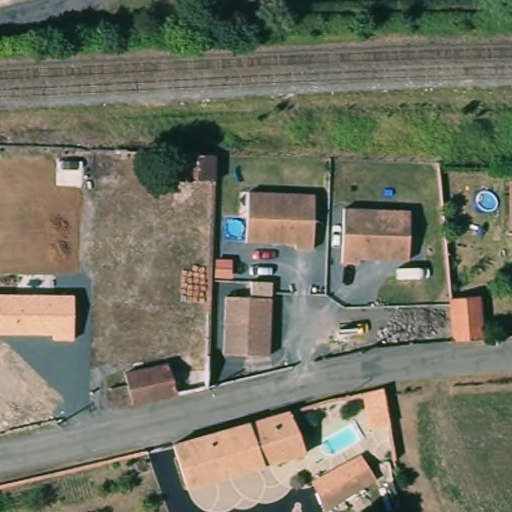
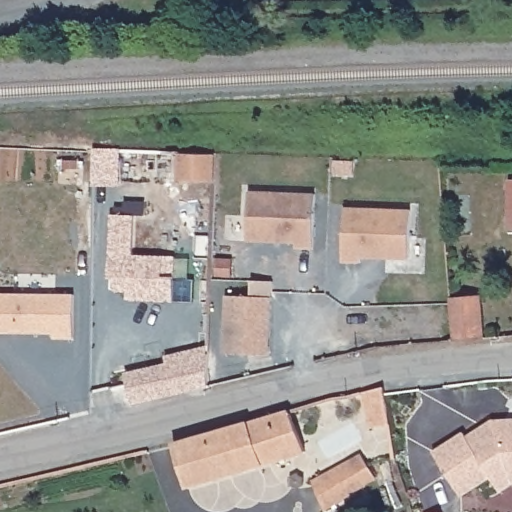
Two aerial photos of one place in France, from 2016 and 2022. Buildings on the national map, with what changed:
unchanged [(216,155),(215,186),(178,182),(179,153),(216,155)]
unchanged [(512,222),(505,221),(506,176),(512,177),(512,222)]
unchanged [(319,187),(317,241),(298,241),(298,234),(251,232),(253,184),(319,187)]
unchanged [(410,207),(409,257),(364,256),(364,260),(343,259),(345,205),(410,207)]
new [(133,255),(173,255),(173,279),(194,279),(193,301),(173,301),(126,298),(126,292),(113,292),(112,280),(107,280),(109,213),(133,215),(133,255)]
unchanged [(52,339),(52,335),(0,334),(0,295),(74,295),(73,339),(52,339)]
unchanged [(269,299),(268,356),(222,355),(225,297),(269,299)]
unchanged [(476,297),(478,338),(447,341),(445,298),(476,297)]
unchanged [(165,356),(207,346),(208,364),(207,389),(131,409),(122,373),(167,364),(165,356)]
unchanged [(373,434),(360,400),(385,397),(386,402),(392,432),(373,434)]
unchanged [(282,409),(296,454),(181,486),(166,444),(282,409)]
new [(470,444),(497,428),(512,428),(512,497),(504,501),(494,485),(464,504),(437,459),(467,440),(470,444)]
unchanged [(328,502),(314,474),(352,458),(365,482),(328,502)]

